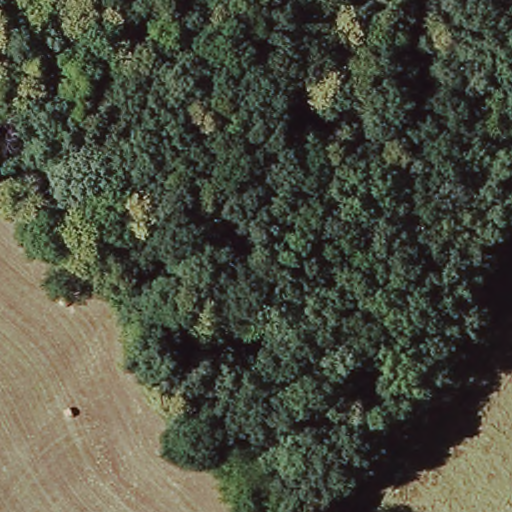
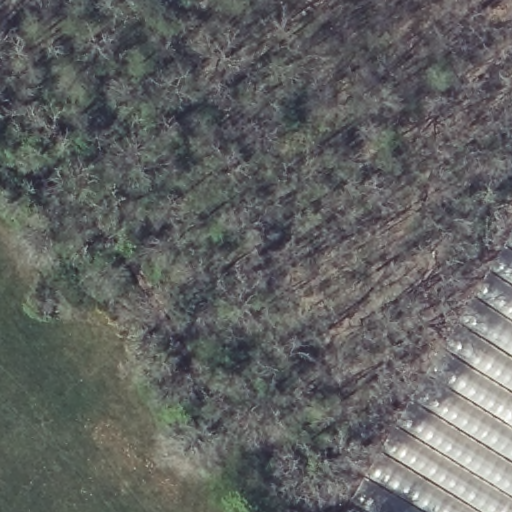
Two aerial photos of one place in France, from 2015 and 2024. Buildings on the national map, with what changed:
new [(391,422),(409,398),(425,373),(444,347),(459,324),(474,297),(489,272),(512,232),(512,512),(361,512),(347,502),(391,422)]

